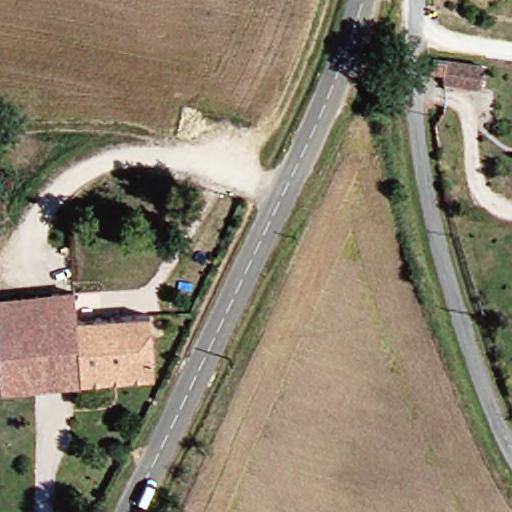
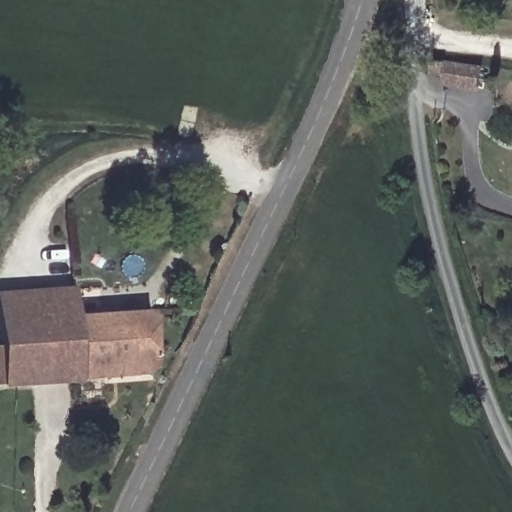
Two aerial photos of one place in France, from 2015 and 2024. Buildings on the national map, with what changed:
unchanged [(491,88),(454,82),(455,74),(443,72),(445,59),(457,60),(494,66),(491,88)]
unchanged [(80,314),(81,342),(0,347),(0,295),(80,294),(80,314)]
unchanged [(80,314),(150,312),(155,374),(0,386),(0,347),(81,342),(80,314)]

